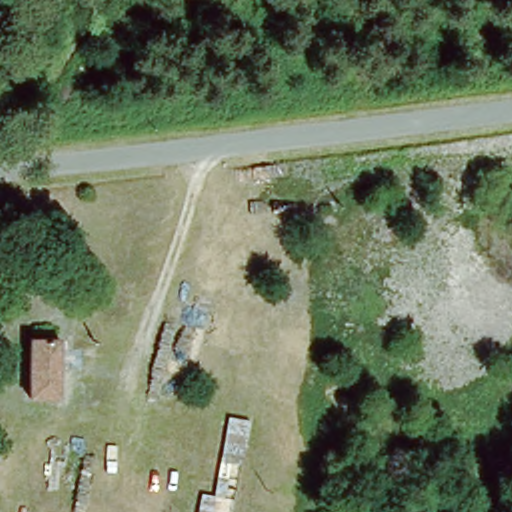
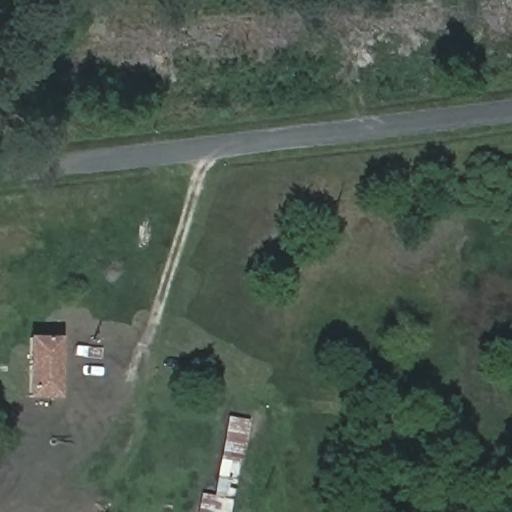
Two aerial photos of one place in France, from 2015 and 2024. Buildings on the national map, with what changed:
unchanged [(29,340),(65,341),(62,398),(31,397),(29,340)]
unchanged [(234,512),(195,512),(199,492),(211,495),(225,415),(252,421),(234,512)]

